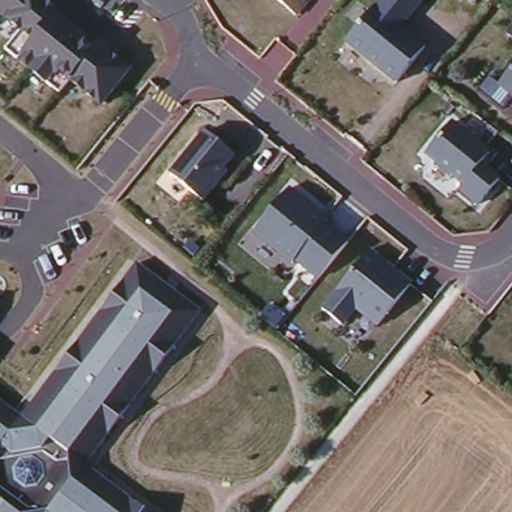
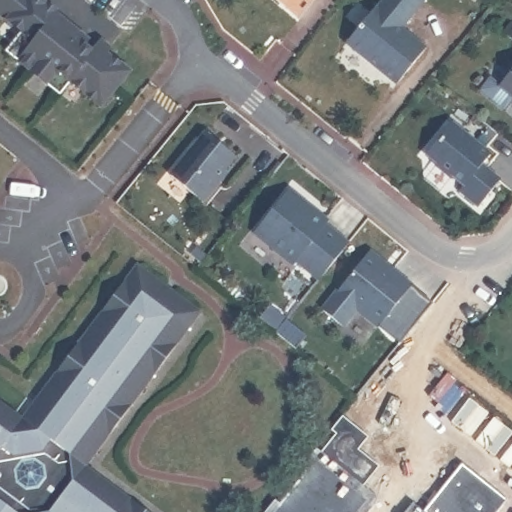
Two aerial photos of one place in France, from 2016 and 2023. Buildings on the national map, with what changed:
unchanged [(100,102),(61,70),(52,82),(8,48),(17,28),(0,14),(0,0),(62,0),(132,59),(100,102)]
unchanged [(281,0),(307,0),(297,14),(281,0)]
unchanged [(426,0),(405,26),(428,43),(396,81),(347,43),(381,0),(426,0)]
unchanged [(512,96),(499,84),(512,68),(512,96)]
unchanged [(455,115),(496,152),(488,162),(503,176),(476,205),(459,190),(463,180),(427,151),(455,115)]
unchanged [(206,130),(238,158),(203,199),(172,172),(206,130)]
unchanged [(291,188),(330,219),(328,223),(349,241),(320,277),(298,261),(292,265),(257,233),(291,188)]
unchanged [(414,279),(380,325),(357,309),(344,325),(323,310),(372,250),(414,279)]
unchanged [(20,418),(138,263),(203,311),(85,466),(146,512),(0,512),(0,402),(20,418)]
new [(277,501),(281,505),(337,436),(332,431),(344,417),(369,438),(359,451),(379,467),(364,487),(379,497),(366,512),(268,512),(277,501)]
new [(414,502),(424,511),(463,463),(508,501),(498,512),(406,512),(414,502)]

